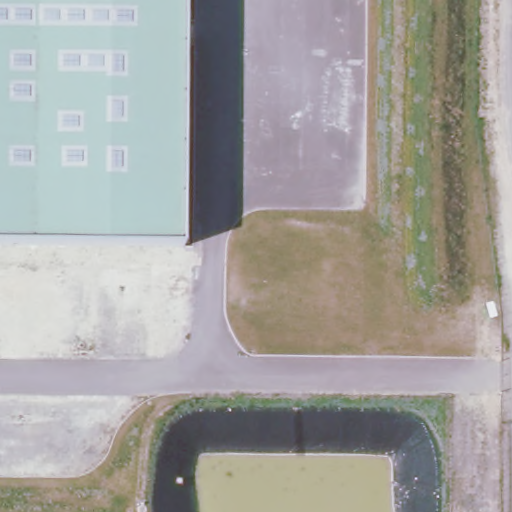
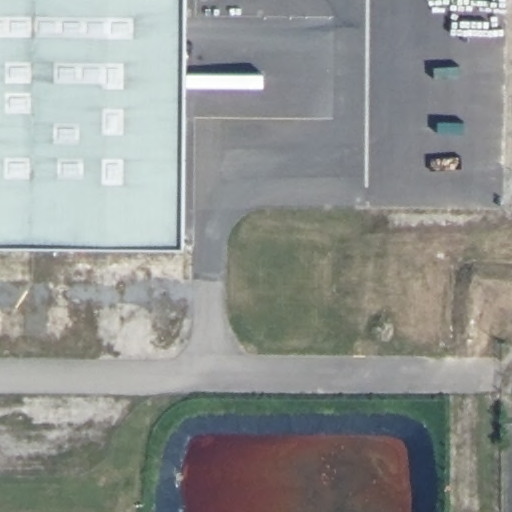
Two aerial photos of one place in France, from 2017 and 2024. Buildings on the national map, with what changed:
unchanged [(0,241),(0,0),(179,0),(186,243),(0,241)]

